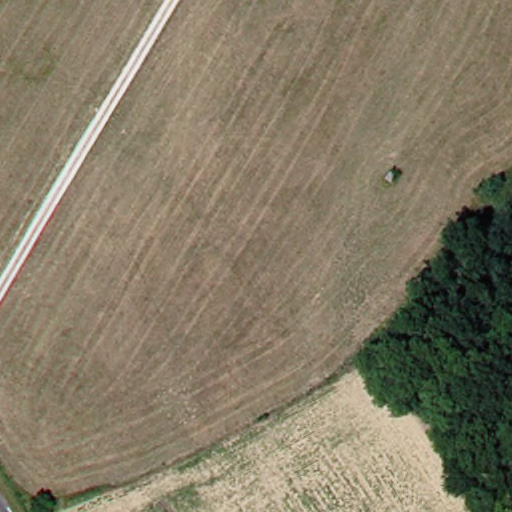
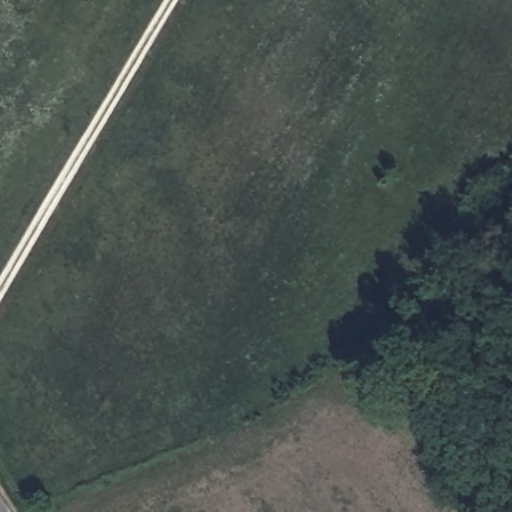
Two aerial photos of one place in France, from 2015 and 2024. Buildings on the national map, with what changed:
[]

